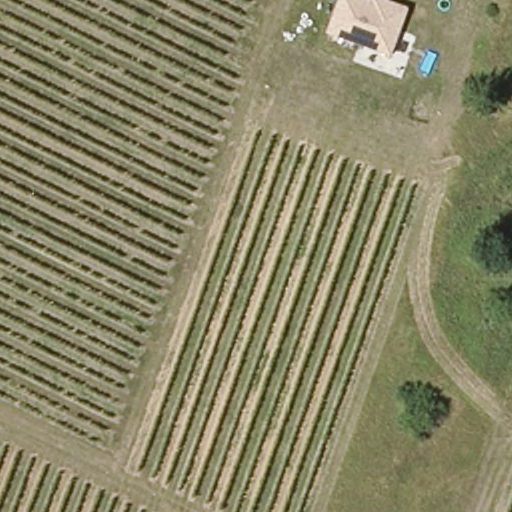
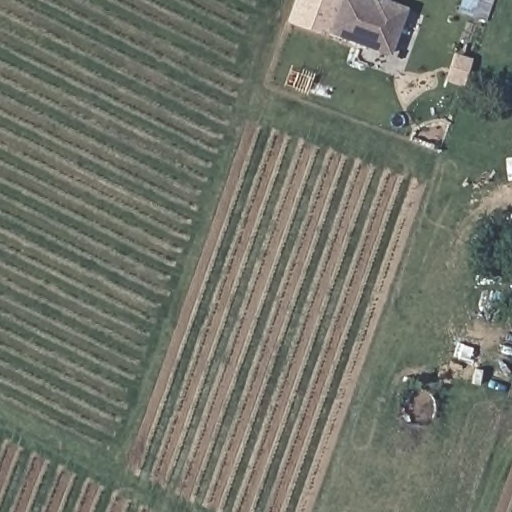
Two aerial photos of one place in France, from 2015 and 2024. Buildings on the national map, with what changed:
new [(320,29),(318,33),(287,23),(296,0),(338,0),(327,31),(320,29)]
unchanged [(390,56),(326,33),(338,0),(387,0),(408,7),(390,56)]

